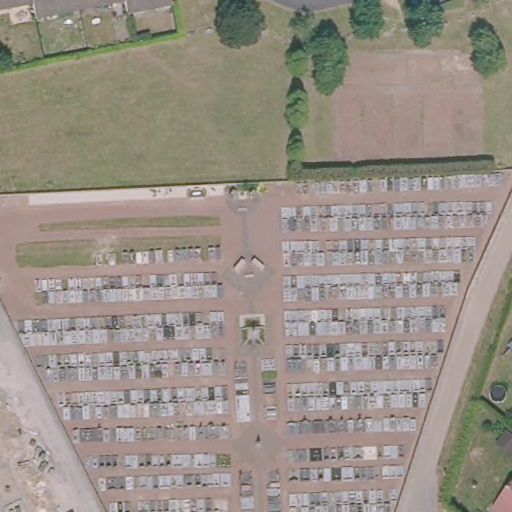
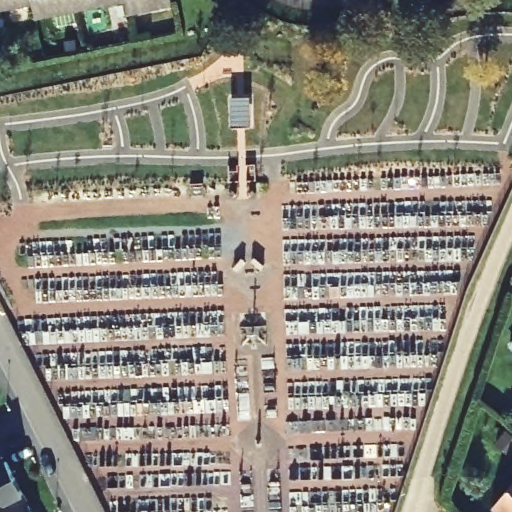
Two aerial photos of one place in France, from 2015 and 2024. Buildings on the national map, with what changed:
unchanged [(32,9),(0,15),(0,0),(30,0),(32,9)]
unchanged [(35,24),(32,9),(30,0),(78,0),(82,15),(35,24)]
unchanged [(125,6),(82,15),(78,0),(124,0),(125,6)]
unchanged [(172,11),(127,20),(125,6),(124,0),(169,0),(172,11)]
new [(508,348),(512,344),(512,352),(508,348)]
new [(8,461),(24,494),(0,505),(0,458),(3,464),(8,461)]
unchanged [(502,512),(495,506),(512,485),(512,512),(502,512)]
new [(33,512),(0,512),(0,505),(24,494),(33,512)]

